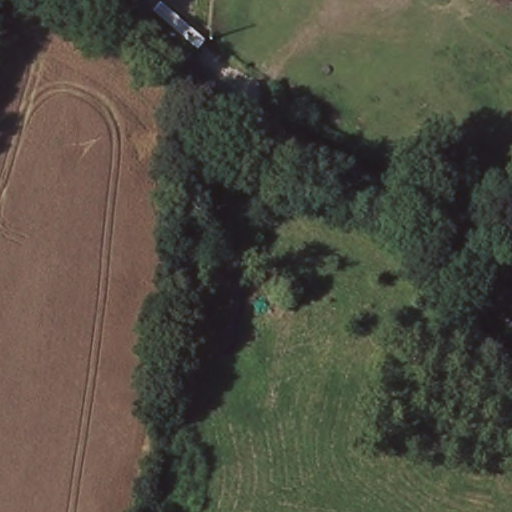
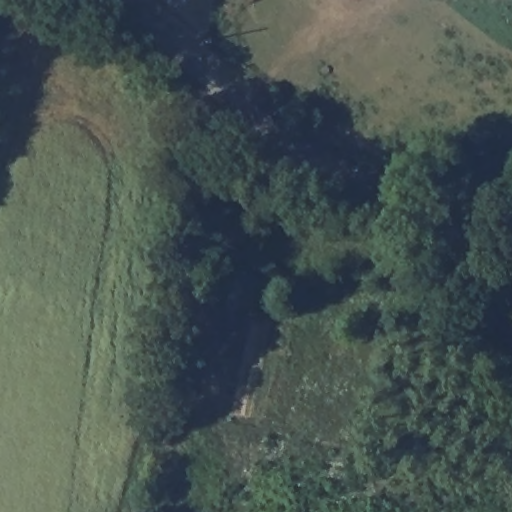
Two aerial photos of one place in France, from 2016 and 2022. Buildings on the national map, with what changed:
unchanged [(187,288),(174,285),(181,247),(194,250),(187,288)]
unchanged [(184,391),(159,387),(164,351),(190,355),(184,391)]

